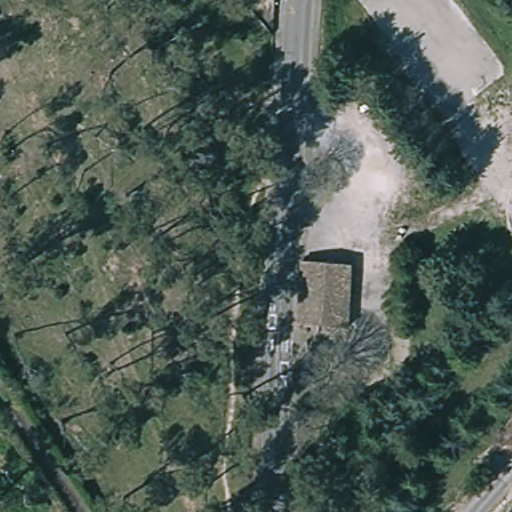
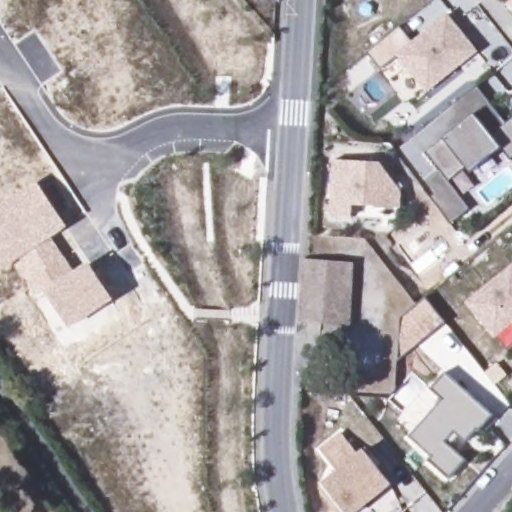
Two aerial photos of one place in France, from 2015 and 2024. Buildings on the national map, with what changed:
new [(445,14),(477,53),(426,94),(395,58),(378,70),(366,54),(399,29),(412,41),(445,14)]
new [(470,175),(464,169),(446,181),(469,209),(450,223),(395,151),(475,86),(506,124),(512,120),(512,157),(508,160),(501,149),(470,175)]
new [(380,163),(399,188),(402,195),(401,208),(351,205),(351,218),(329,218),(332,160),(380,163)]
new [(38,182),(68,228),(52,238),(76,273),(90,264),(114,300),(70,328),(46,293),(38,298),(28,283),(34,278),(23,258),(1,272),(0,271),(0,206),(38,182)]
unchanged [(355,261),(350,285),(353,323),(353,324),(303,320),(308,258),(355,261)]
new [(494,338),(466,303),(512,266),(512,324),(494,338)]
new [(441,401),(429,390),(445,372),(493,416),(477,433),(476,432),(465,443),(454,434),(445,443),(466,461),(448,480),(427,461),(430,457),(408,438),(441,401)]
new [(364,452),(391,486),(357,512),(344,512),(322,484),(364,452)]

